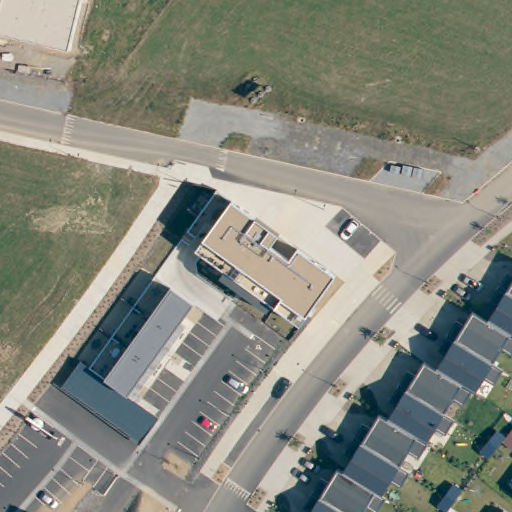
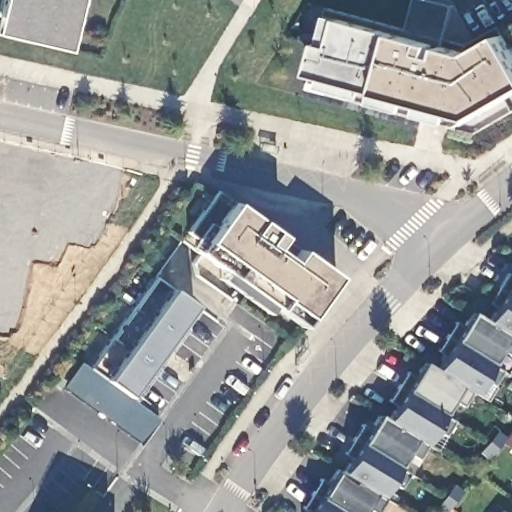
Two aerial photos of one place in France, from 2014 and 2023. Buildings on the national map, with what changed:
unchanged [(79,10),(69,52),(0,36),(0,10),(3,0),(91,0),(88,14),(79,10)]
new [(330,15),(340,19),(396,35),(470,53),(502,35),(512,53),(512,95),(473,117),(462,125),(450,121),(375,102),(322,86),(324,78),(309,74),(318,42),(330,15)]
unchanged [(214,191),(232,202),(271,230),(280,235),(271,247),(289,260),(297,250),(335,276),(305,316),(298,326),(271,307),(265,313),(220,280),(227,273),(198,251),(189,246),(195,239),(185,232),(214,191)]
unchanged [(319,499),(310,495),(320,480),(329,486),(338,471),(343,473),(362,443),(354,439),(364,425),(372,431),(380,417),(388,422),(407,391),(397,386),(408,373),(417,377),(424,365),(436,371),(456,342),(445,339),(456,322),(465,327),(473,313),(488,323),(507,293),(497,291),(509,274),(512,276),(512,354),(511,356),(501,347),(492,365),(501,372),(492,385),(482,379),(475,392),(462,406),(452,398),(442,415),(453,422),(445,435),(434,428),(426,444),(418,460),(406,452),(397,467),(408,474),(400,488),(390,481),(380,497),(384,500),(376,512),(373,512),(366,508),(363,512),(311,512),(319,499)]
unchanged [(154,277),(171,290),(193,305),(127,396),(159,420),(140,445),(62,390),(81,364),(89,370),(154,277)]
unchanged [(512,486),(511,485),(512,483),(512,486)]

